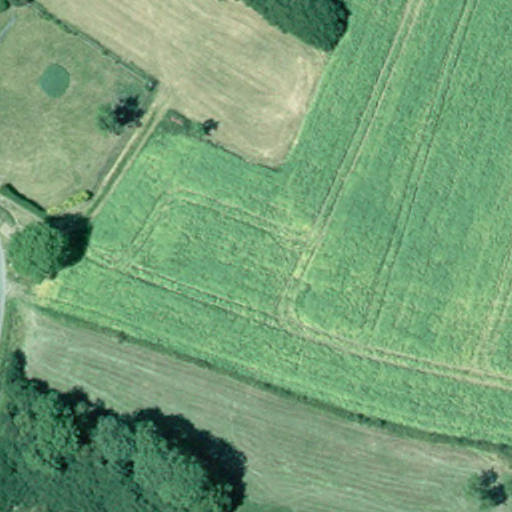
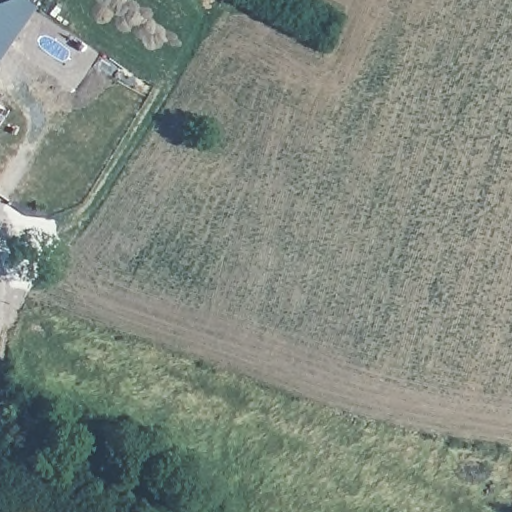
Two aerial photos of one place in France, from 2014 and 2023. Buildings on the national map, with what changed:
new [(6,0),(23,0),(33,7),(0,56),(0,2),(6,0)]

